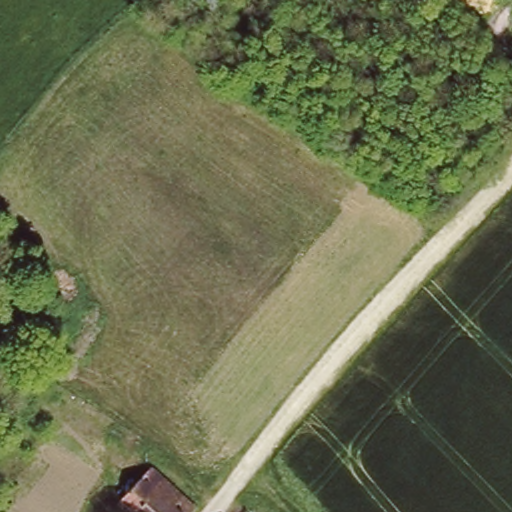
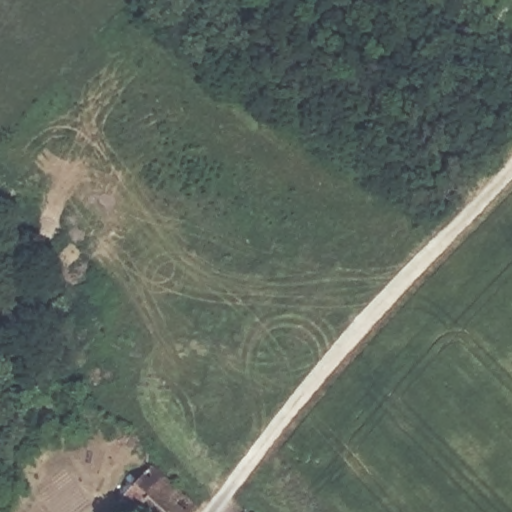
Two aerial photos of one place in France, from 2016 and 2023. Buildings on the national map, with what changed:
unchanged [(199,511),(199,512),(129,512),(121,505),(150,470),(199,511)]

